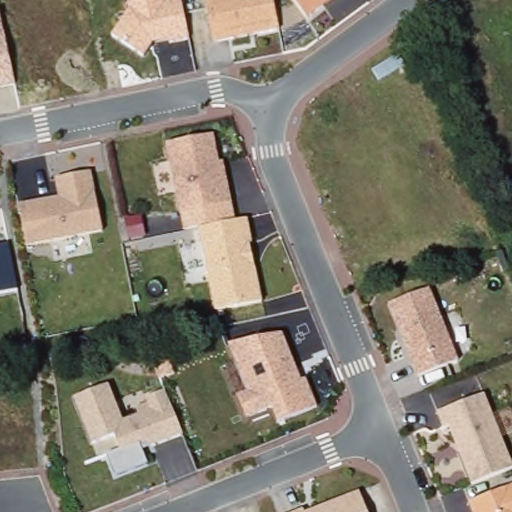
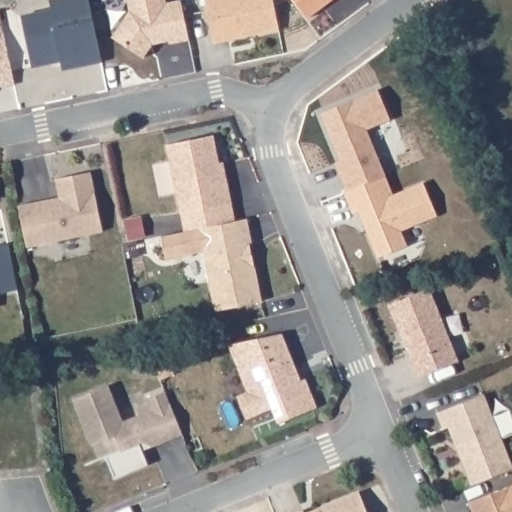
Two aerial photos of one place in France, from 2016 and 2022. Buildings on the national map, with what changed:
new [(39,6),(67,0),(76,0),(91,67),(53,75),(51,67),(22,73),(11,23),(41,16),(39,6)]
unchanged [(142,58),(113,39),(127,13),(125,0),(183,0),(190,40),(152,44),(142,58)]
unchanged [(207,0),(274,0),(280,33),(214,43),(207,0)]
unchanged [(295,0),(335,0),(310,19),(295,0)]
unchanged [(13,84),(0,87),(0,10),(13,84)]
new [(316,118),(373,93),(386,123),(361,133),(381,179),(343,195),(335,179),(331,167),(336,164),(316,118)]
unchanged [(214,311),(196,230),(182,232),(167,144),(217,136),(234,218),(245,216),(261,302),(214,311)]
unchanged [(28,248),(18,207),(58,196),(55,182),(91,172),(104,231),(28,248)]
new [(343,195),(381,179),(389,199),(419,185),(433,219),(397,234),(403,249),(374,261),(354,214),(348,217),(340,197),(343,195)]
unchanged [(10,243),(19,289),(0,293),(0,245),(10,243)]
unchanged [(418,377),(389,308),(431,290),(457,360),(418,377)]
unchanged [(278,424),(271,409),(247,418),(238,397),(248,392),(231,347),(283,335),(299,379),(304,378),(317,409),(278,424)]
unchanged [(143,449),(147,462),(114,477),(106,457),(120,451),(112,434),(92,442),(74,402),(109,385),(125,420),(137,414),(135,408),(146,404),(144,399),(164,391),(184,435),(143,449)]
unchanged [(445,413),(487,397),(512,467),(512,470),(471,486),(445,413)]
unchanged [(470,501),(512,486),(512,512),(474,512),(470,501)]
unchanged [(361,493),(370,512),(310,512),(361,493)]

